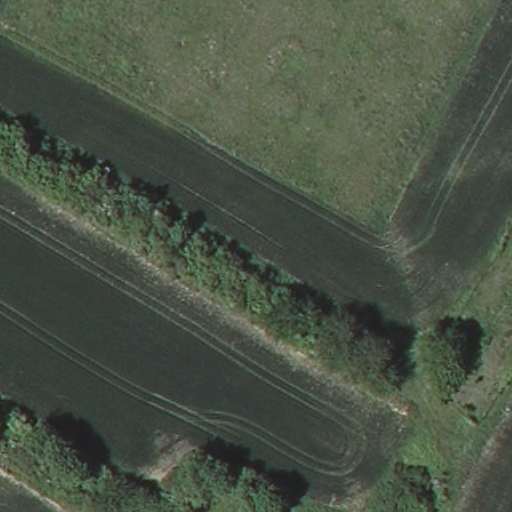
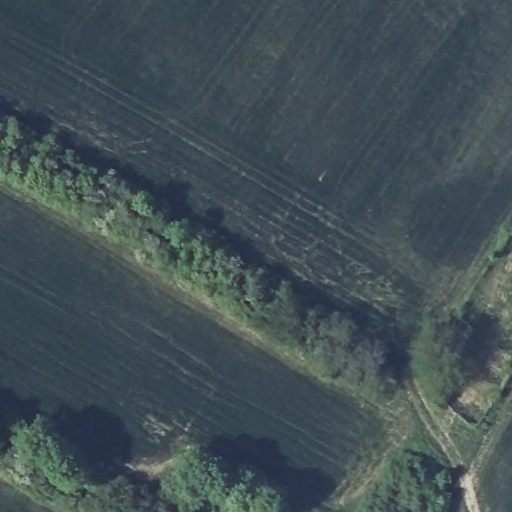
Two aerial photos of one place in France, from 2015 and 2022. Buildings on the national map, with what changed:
[]

